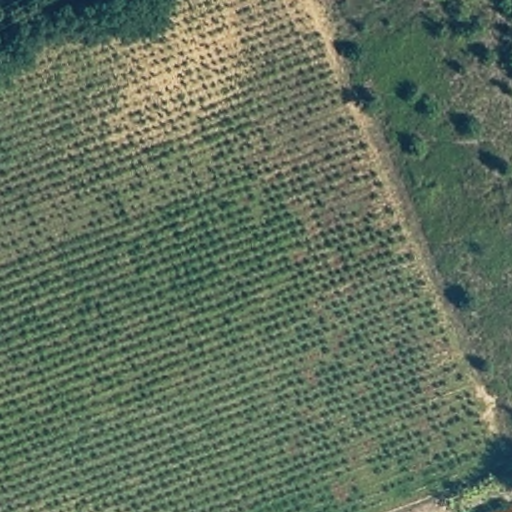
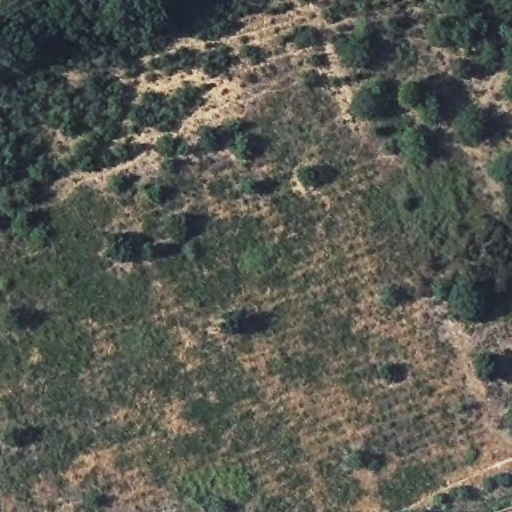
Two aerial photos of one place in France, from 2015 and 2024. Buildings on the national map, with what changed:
[]

